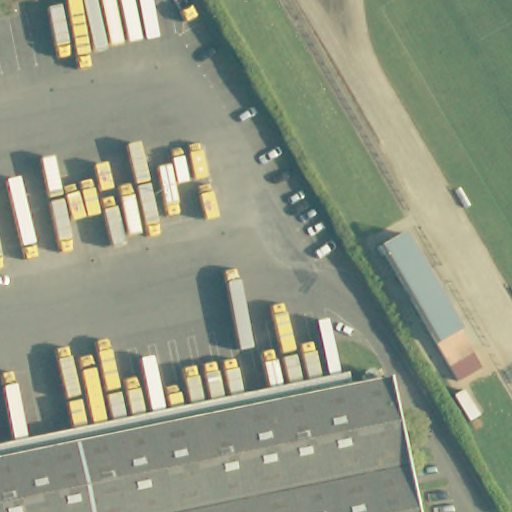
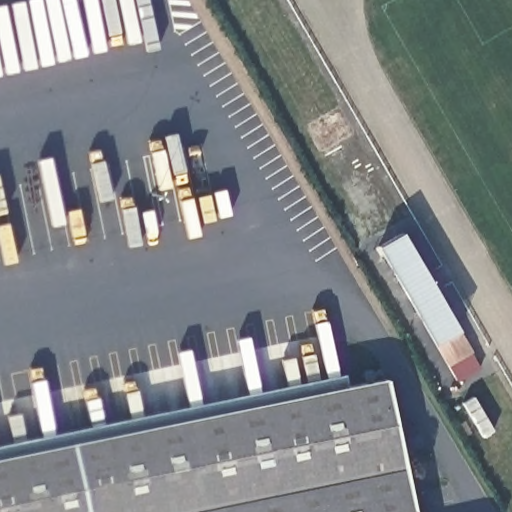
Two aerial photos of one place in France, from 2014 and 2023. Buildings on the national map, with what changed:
unchanged [(410,249),(463,347),(439,360),(385,262),(410,249)]
unchanged [(421,512),(0,512),(0,458),(396,380),(421,512)]

